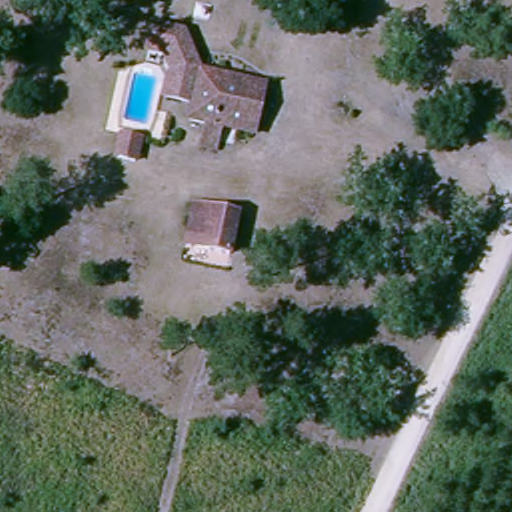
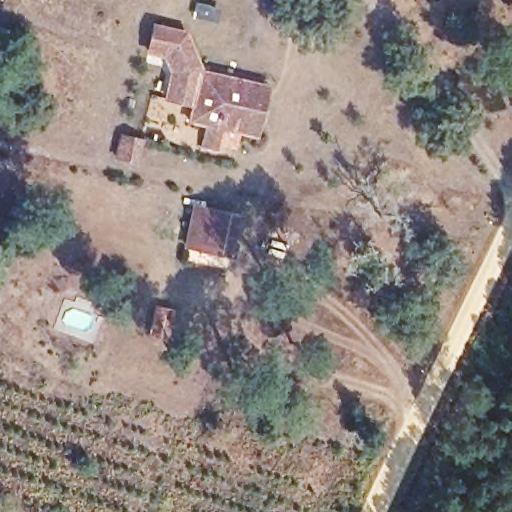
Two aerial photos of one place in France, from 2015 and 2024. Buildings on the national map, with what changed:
unchanged [(138,27),(167,30),(198,69),(261,72),(254,127),(234,126),(229,148),(203,146),(206,123),(187,122),(188,98),(167,99),(169,75),(153,62),(136,60),(138,27)]
unchanged [(155,126),(150,160),(122,155),(127,122),(155,126)]
unchanged [(238,215),(237,251),(197,250),(201,214),(238,215)]

